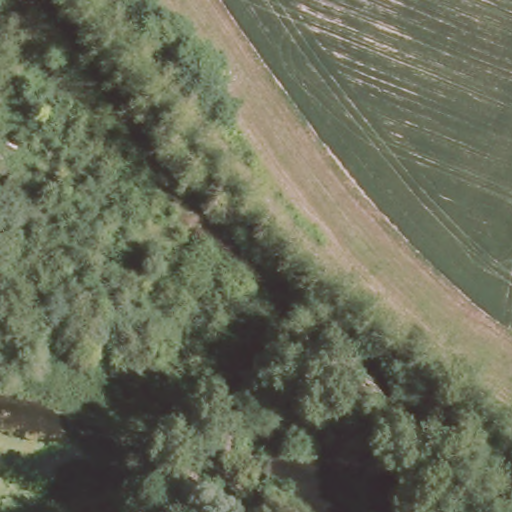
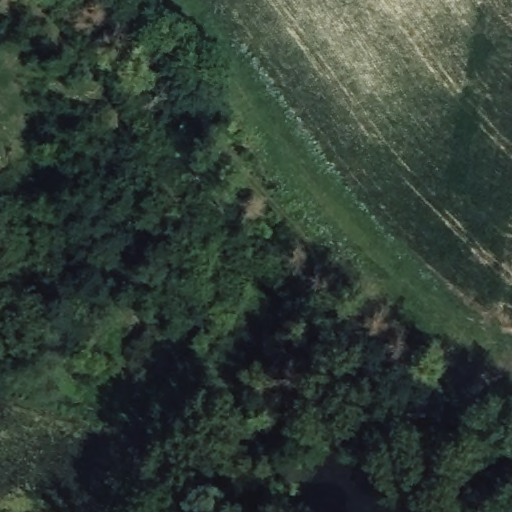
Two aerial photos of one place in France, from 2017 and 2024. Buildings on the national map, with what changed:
[]

